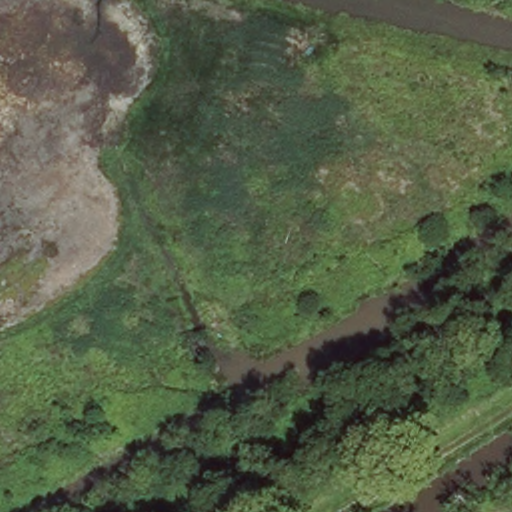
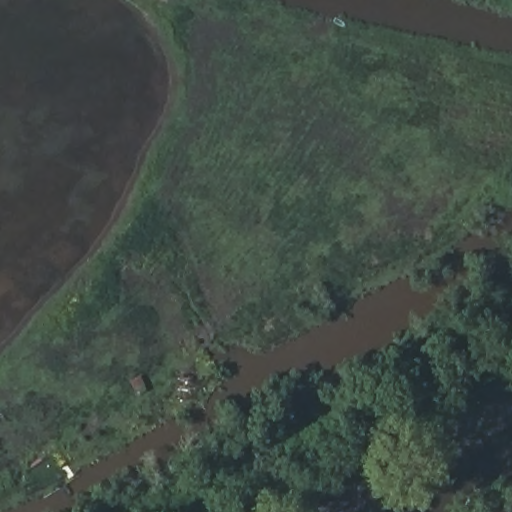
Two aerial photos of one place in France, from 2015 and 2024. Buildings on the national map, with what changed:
[]

